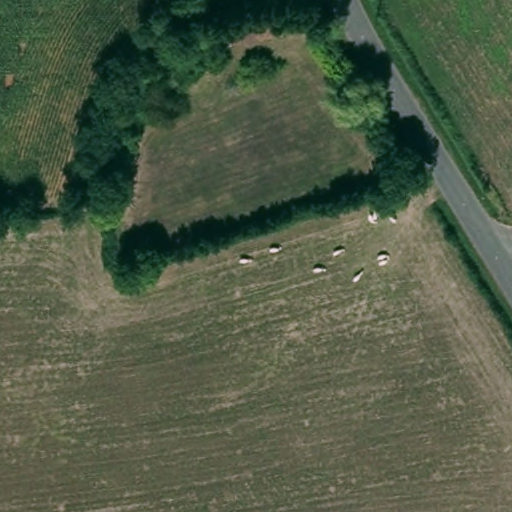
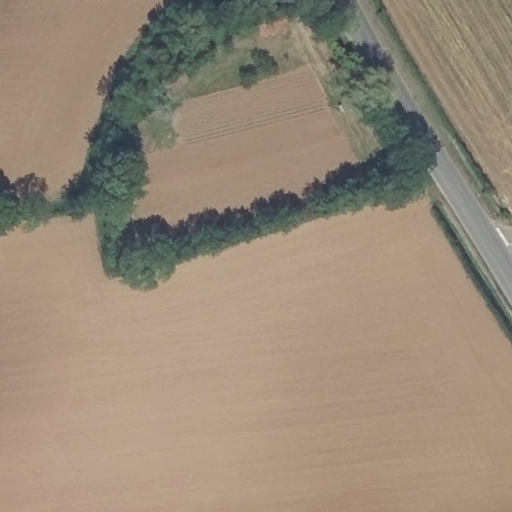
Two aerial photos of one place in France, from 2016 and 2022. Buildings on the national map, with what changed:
unchanged [(249,43),(250,62),(224,64),(219,25),(291,13),(295,29),(249,43)]

